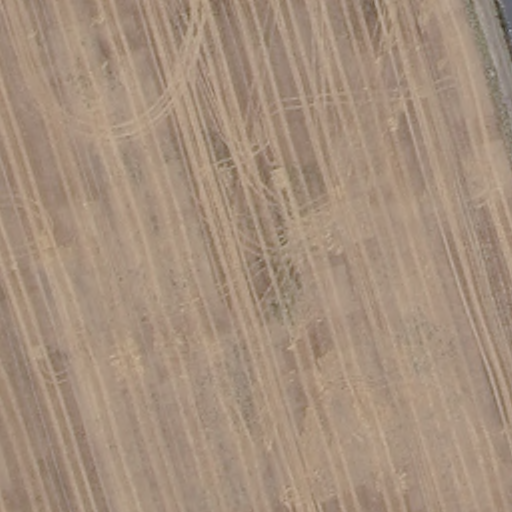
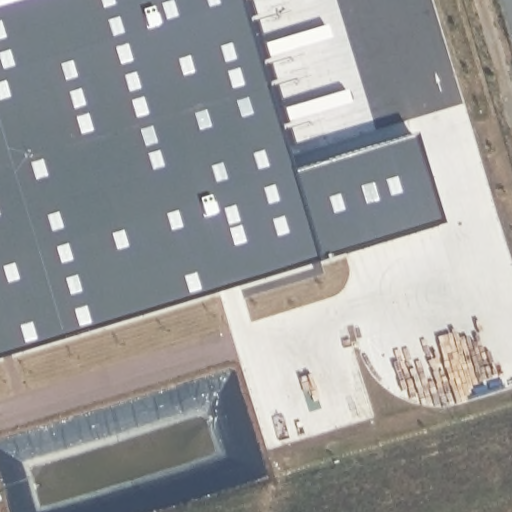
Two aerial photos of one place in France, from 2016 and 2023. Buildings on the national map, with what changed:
new [(270,164),(392,126),(420,211),(0,339),(0,0),(222,0),(270,164)]
demolished [(47,75),(20,81),(20,89),(0,91),(0,70),(45,61),(47,75)]

